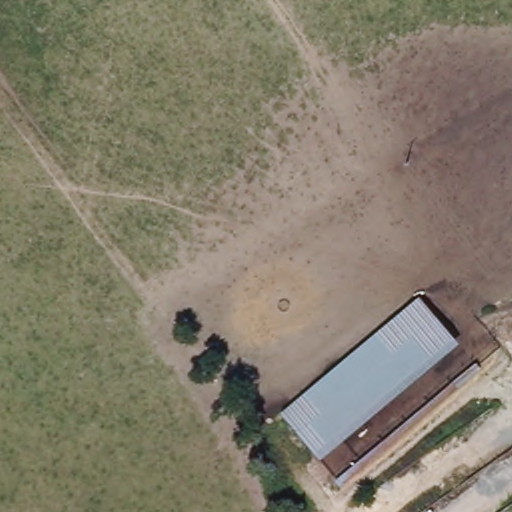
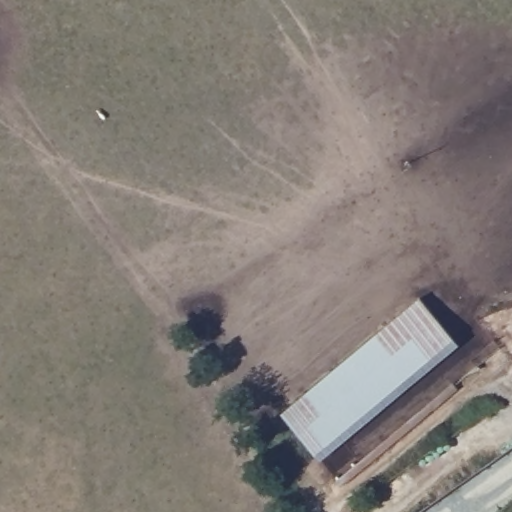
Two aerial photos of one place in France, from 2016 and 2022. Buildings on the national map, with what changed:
unchanged [(462,339),(323,455),(291,414),(428,300),(462,339)]

